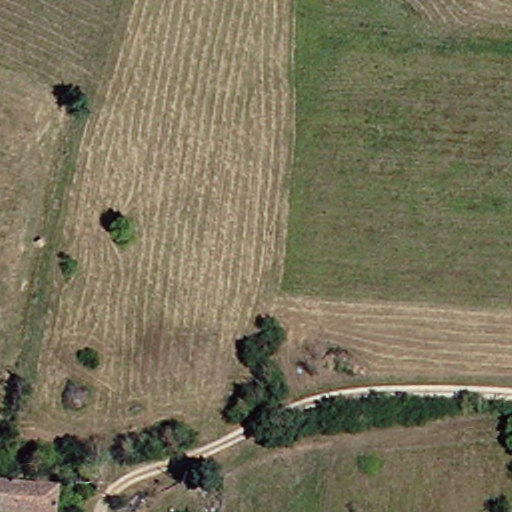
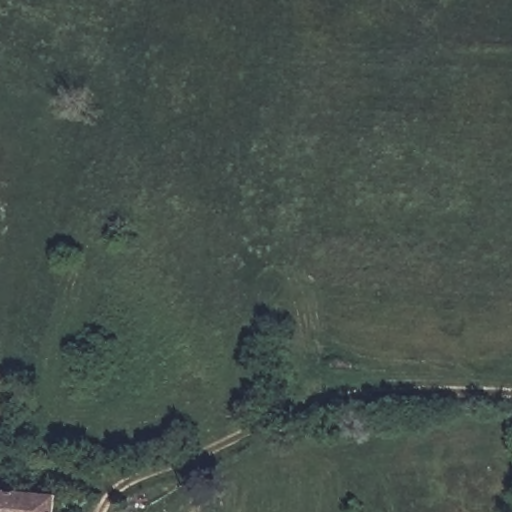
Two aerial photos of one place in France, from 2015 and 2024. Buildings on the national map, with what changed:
unchanged [(50,512),(0,512),(0,487),(53,494),(50,512)]

